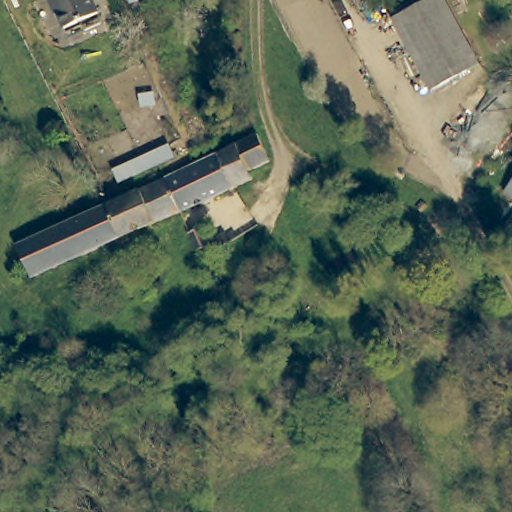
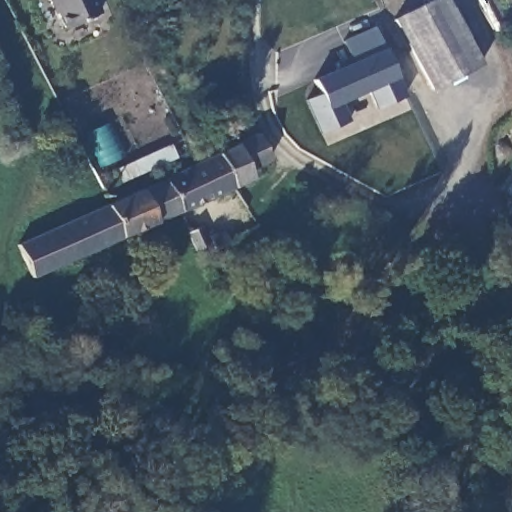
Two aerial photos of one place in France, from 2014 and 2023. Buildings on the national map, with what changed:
unchanged [(67,27),(55,2),(52,4),(51,0),(96,0),(101,10),(67,27)]
unchanged [(481,60),(430,88),(391,18),(426,0),(448,0),(481,60)]
new [(377,108),(370,88),(345,99),(352,120),(320,134),(305,99),(316,94),(310,78),(349,61),(342,38),(376,26),(384,46),(398,77),(407,95),(377,108)]
unchanged [(221,158),(261,137),(274,165),(252,174),(257,182),(237,192),(221,158)]
unchanged [(184,216),(172,190),(169,182),(212,162),(221,158),(237,192),(184,216)]
unchanged [(36,282),(35,279),(21,250),(59,232),(114,207),(169,182),(172,190),(184,216),(36,282)]
unchanged [(510,191),(512,188),(512,193),(510,191)]
unchanged [(215,247),(209,237),(224,231),(228,241),(215,247)]

